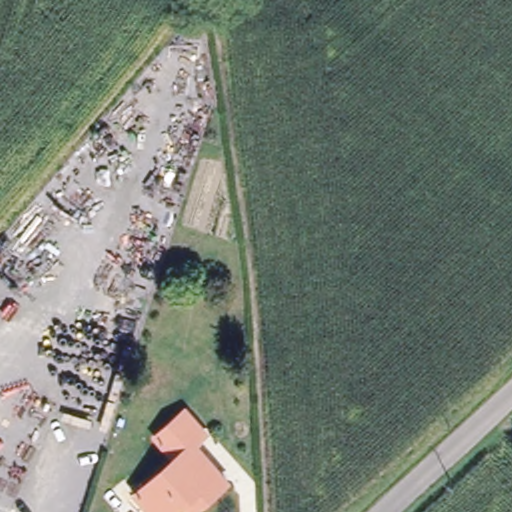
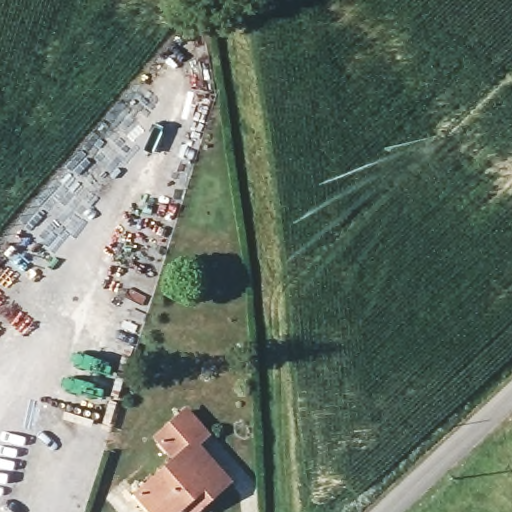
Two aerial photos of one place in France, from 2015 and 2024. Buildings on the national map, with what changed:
unchanged [(171,461),(151,432),(188,407),(215,441),(205,449),(235,487),(199,512),(189,512),(184,505),(177,512),(148,512),(134,492),(171,461)]

